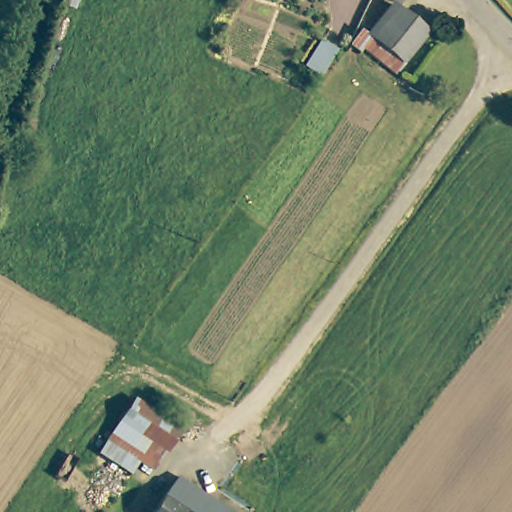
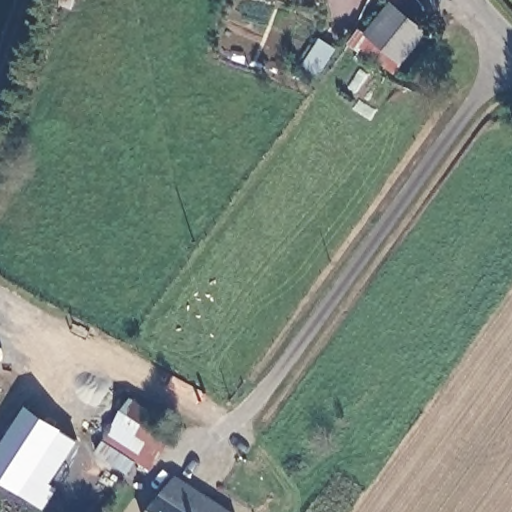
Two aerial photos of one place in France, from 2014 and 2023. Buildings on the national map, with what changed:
unchanged [(404,0),(402,4),(394,0),(404,0)]
unchanged [(432,35),(398,75),(365,47),(399,7),(432,35)]
unchanged [(110,467),(124,446),(116,441),(123,432),(113,426),(135,393),(181,423),(181,425),(179,427),(166,444),(158,456),(144,447),(138,456),(125,477),(110,467)]
new [(56,486),(53,490),(57,493),(46,510),(0,479),(0,450),(30,406),(81,442),(52,482),(56,486)]
unchanged [(174,471),(231,509),(229,512),(145,512),(174,471)]

